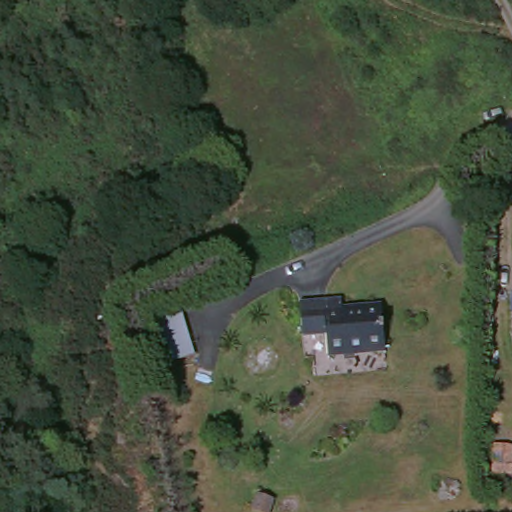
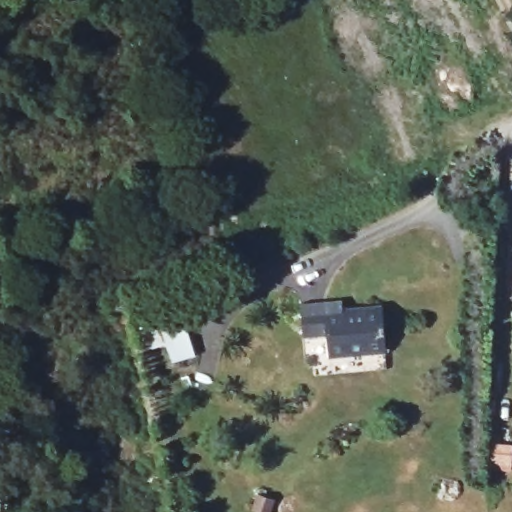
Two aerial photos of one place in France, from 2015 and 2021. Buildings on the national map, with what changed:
unchanged [(388,350),(330,354),(329,338),(304,339),(304,303),(345,301),(344,309),(384,307),(388,350)]
unchanged [(243,351),(215,365),(194,328),(218,313),(243,351)]

